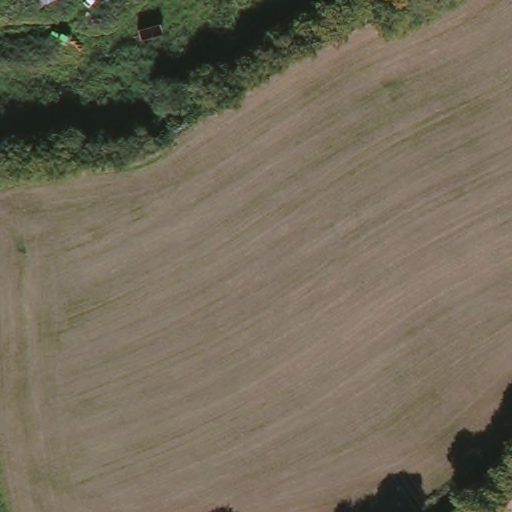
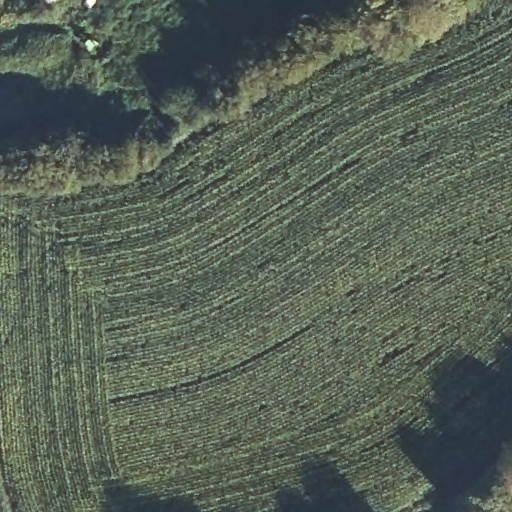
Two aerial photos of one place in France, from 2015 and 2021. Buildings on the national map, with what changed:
unchanged [(52,0),(62,0),(54,4),(52,0)]

